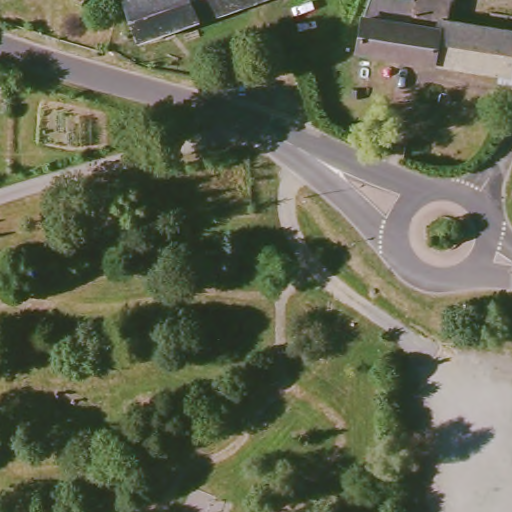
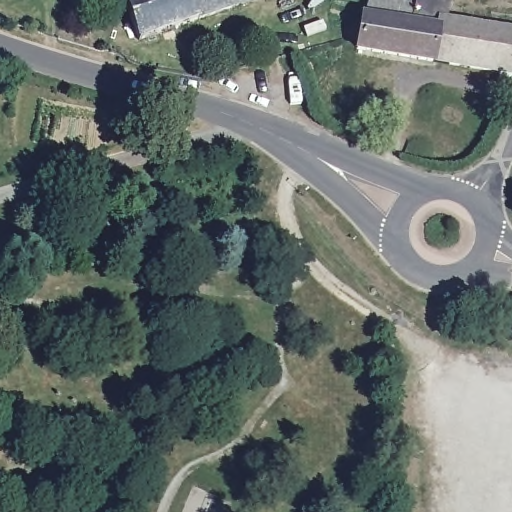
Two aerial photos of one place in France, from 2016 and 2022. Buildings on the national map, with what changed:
unchanged [(119,0),(186,0),(194,20),(133,41),(119,0)]
unchanged [(186,0),(248,0),(194,20),(186,0)]
unchanged [(512,30),(512,76),(509,75),(506,82),(498,81),(499,74),(356,50),(363,16),(364,16),(369,0),(412,0),(416,0),(451,0),(447,20),(512,30)]

